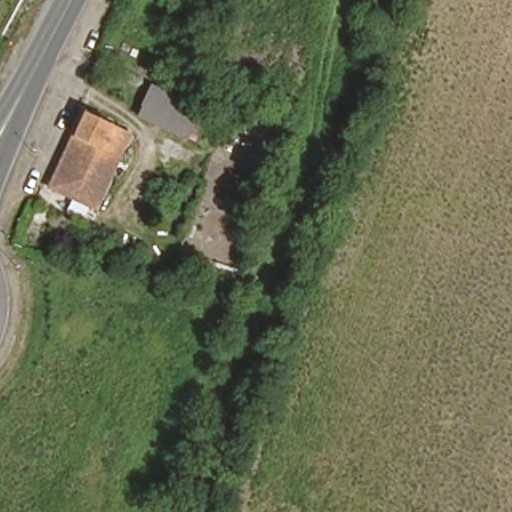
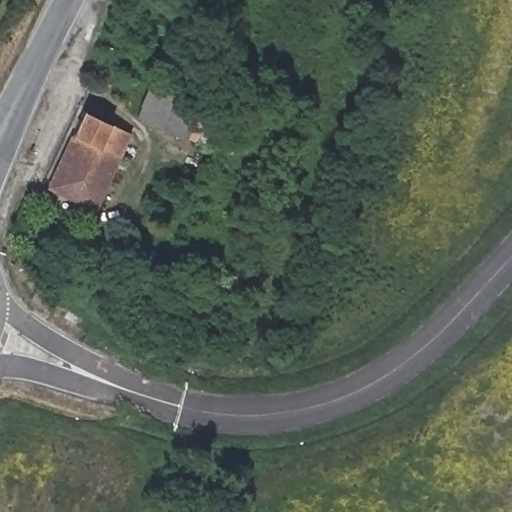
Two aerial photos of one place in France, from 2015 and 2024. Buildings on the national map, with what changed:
unchanged [(196,139),(189,136),(188,139),(140,116),(154,86),(200,107),(198,113),(205,118),(196,139)]
unchanged [(53,187),(86,114),(128,134),(94,205),(53,187)]

